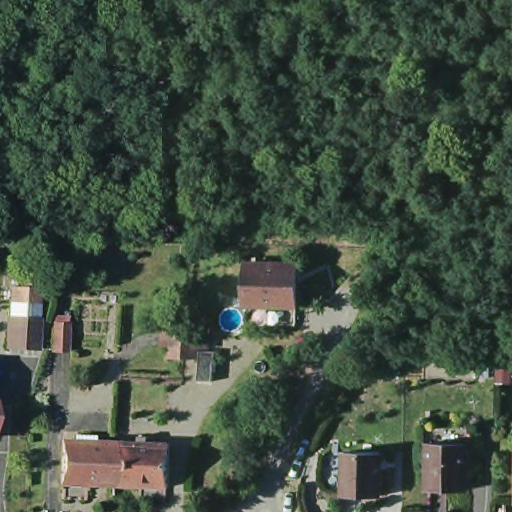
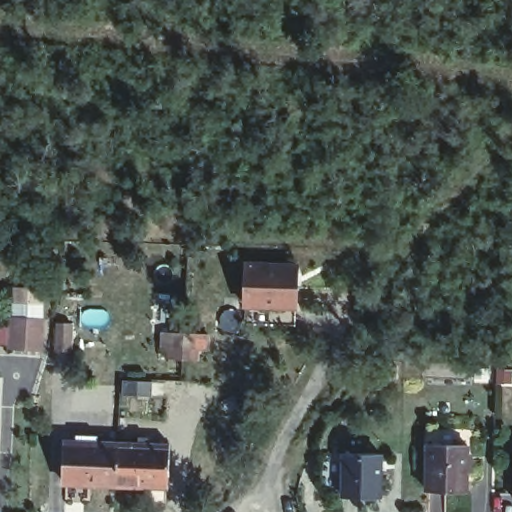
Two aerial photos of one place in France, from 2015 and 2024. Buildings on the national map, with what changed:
unchanged [(292,266),(291,298),(291,307),(241,305),(241,295),(242,264),(292,266)]
unchanged [(15,307),(19,278),(44,282),(40,311),(15,307)]
unchanged [(10,346),(14,315),(44,319),(40,350),(10,346)]
unchanged [(56,352),(57,323),(71,324),(70,352),(56,352)]
unchanged [(192,365),(177,364),(164,364),(165,338),(179,339),(194,339),(192,365)]
unchanged [(65,480),(67,437),(118,439),(117,458),(116,482),(65,480)]
unchanged [(117,458),(118,439),(170,440),(168,483),(116,482),(117,458)]
unchanged [(426,490),(427,444),(467,445),(466,491),(426,490)]
unchanged [(342,496),(342,453),(380,454),(379,497),(342,496)]

